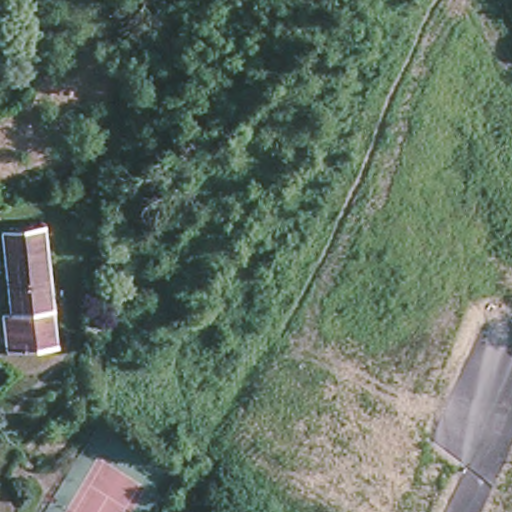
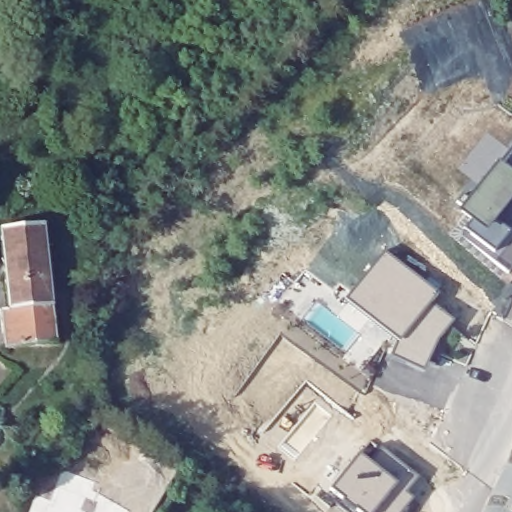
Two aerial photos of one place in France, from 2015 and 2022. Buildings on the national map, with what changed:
new [(499,216),(503,224),(512,217),(512,266),(508,270),(462,233),(465,217),(458,210),(498,159),(512,144),(512,199),(499,216)]
unchanged [(44,224),(57,345),(5,350),(1,310),(8,310),(0,228),(44,224)]
new [(445,293),(439,302),(457,315),(456,318),(438,340),(423,374),(389,357),(396,347),(338,301),(384,242),(445,293)]
new [(402,512),(349,512),(338,503),(340,501),(327,491),(343,470),(357,454),(367,462),(380,446),(418,477),(405,493),(412,499),(402,512)]
new [(36,495),(50,500),(63,470),(95,483),(92,491),(129,510),(128,512),(29,512),(36,495)]

